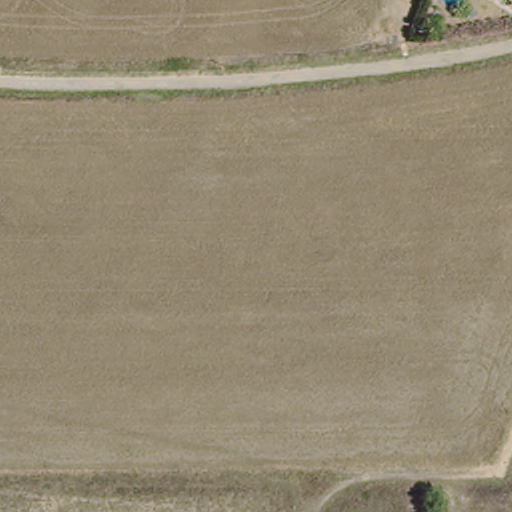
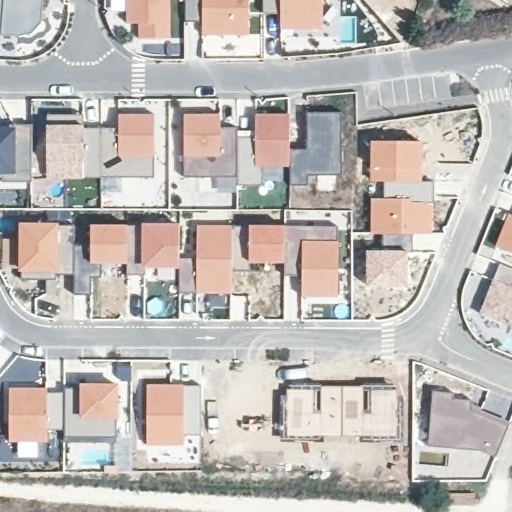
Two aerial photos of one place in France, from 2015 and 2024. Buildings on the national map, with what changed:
new [(37,30),(30,35),(0,36),(0,0),(43,0),(40,24),(37,30)]
new [(138,39),(138,24),(127,24),(126,0),(169,0),(170,39),(138,39)]
new [(202,35),(202,23),(185,23),(184,0),(248,0),(248,35),(202,35)]
new [(280,29),(280,13),(262,13),(262,0),(323,0),(323,29),(280,29)]
new [(308,149),(307,111),(343,111),(343,175),(309,175),(309,185),(290,185),(290,166),(290,149),(308,149)]
new [(238,177),(238,135),(256,135),(255,113),(290,113),(290,149),(290,166),(263,166),(263,185),(238,185),(238,177)]
new [(102,126),(120,126),(120,114),(155,114),(155,177),(102,177),(102,126)]
new [(222,114),(222,127),(238,126),(238,135),(238,177),(186,177),(185,114),(222,114)]
new [(83,115),(83,124),(85,125),(85,128),(102,128),(102,177),(85,177),(84,179),(46,179),(47,162),(47,125),(48,115),(83,115)]
new [(15,124),(32,123),(33,179),(5,179),(5,169),(0,169),(0,129),(15,129),(15,124)]
new [(383,198),(383,182),(370,181),(370,140),(422,141),(422,182),(434,182),(433,202),(432,234),(370,234),(370,198),(383,198)]
new [(507,212),(512,214),(512,254),(495,248),(507,212)]
new [(18,222),(60,222),(60,225),(60,274),(18,274),(18,222)]
new [(180,269),(157,269),(139,269),(140,223),(180,223),(180,258),(195,259),(195,258),(196,224),(232,225),(231,295),(195,294),(180,293),(180,269)]
new [(139,269),(143,269),(144,274),(127,275),(127,263),(90,264),(90,224),(128,224),(140,224),(139,269)]
new [(248,224),(286,225),(285,262),(248,262),(249,272),(231,270),(232,225),(248,226),(248,224)]
new [(75,225),(75,245),(90,244),(90,264),(102,264),(100,278),(91,278),(90,294),(75,295),(73,274),(60,274),(60,225),(75,225)]
new [(285,262),(286,225),(337,226),(338,239),(300,239),(300,274),(285,274),(285,262)]
new [(412,234),(412,252),(407,252),(407,249),(383,250),(383,234),(412,234)]
new [(338,239),(338,297),(301,298),(300,274),(300,239),(338,239)]
new [(407,249),(408,287),(366,284),(365,250),(407,249)]
new [(499,263),(512,267),(512,326),(477,313),(499,263)]
new [(48,430),(48,390),(64,389),(75,389),(75,392),(78,392),(78,383),(120,383),(117,438),(63,438),(63,430),(48,430)]
new [(145,384),(201,385),(200,437),(185,437),(185,447),(145,446),(145,384)]
new [(285,388),(343,386),(397,387),(399,438),(341,436),(284,438),(285,388)]
new [(431,391),(454,394),(453,396),(470,404),(480,409),(505,421),(508,423),(495,458),(475,452),(427,447),(431,391)]

